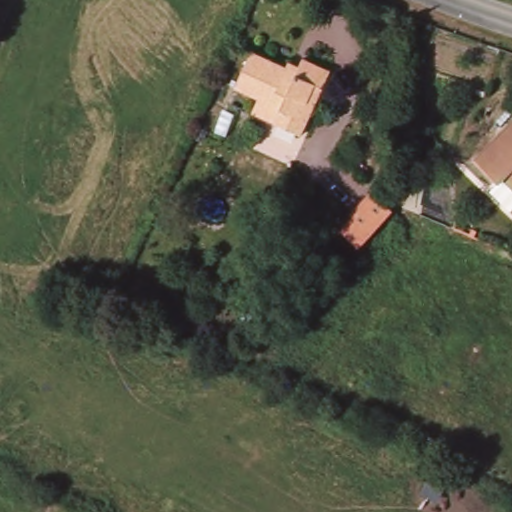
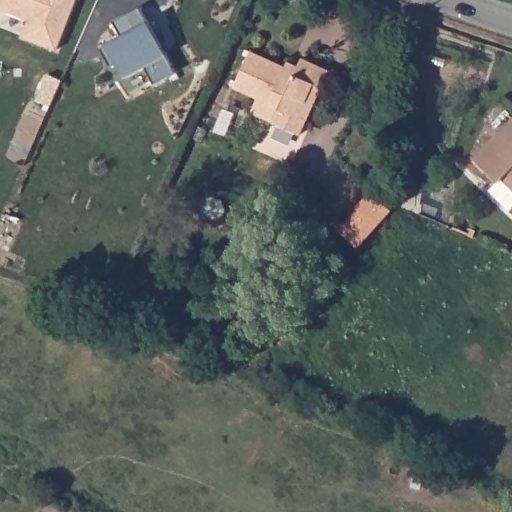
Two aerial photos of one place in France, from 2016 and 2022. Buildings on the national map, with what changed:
new [(49,52),(15,38),(26,12),(15,8),(0,13),(0,0),(70,0),(49,52)]
new [(119,40),(110,24),(137,10),(173,75),(152,87),(142,69),(123,79),(116,65),(108,70),(98,51),(119,40)]
unchanged [(305,68),(310,53),(337,66),(330,82),(321,79),(314,92),(324,97),(305,135),(260,112),(267,99),(241,85),(259,45),(305,68)]
unchanged [(501,167),(494,172),(476,152),(512,123),(512,181),(501,167)]
unchanged [(399,210),(364,249),(344,230),(377,193),(399,210)]

